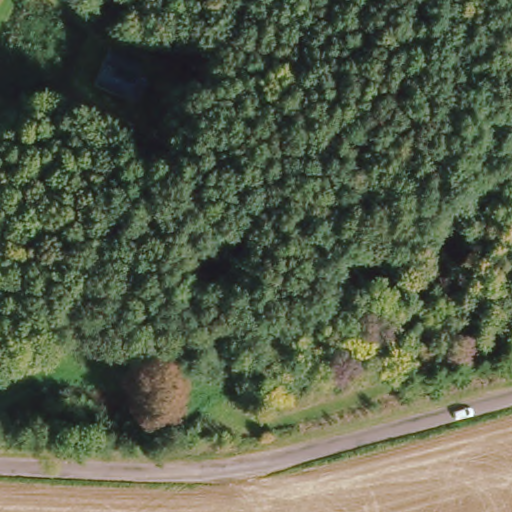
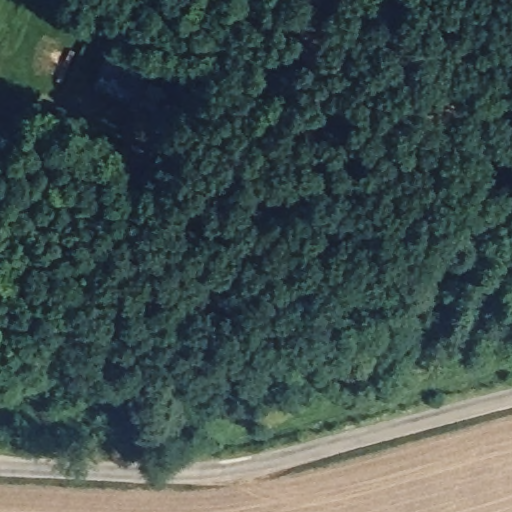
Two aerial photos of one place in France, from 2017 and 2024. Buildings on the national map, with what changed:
unchanged [(140,102),(90,83),(105,48),(138,62),(133,74),(149,80),(140,102)]

